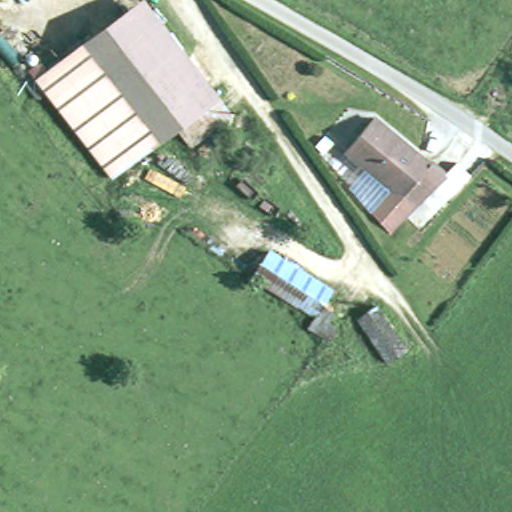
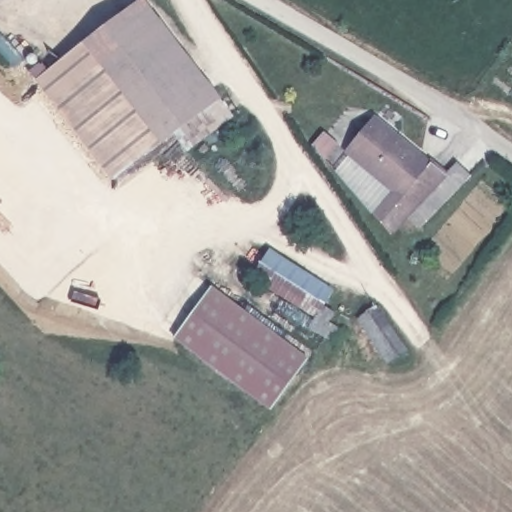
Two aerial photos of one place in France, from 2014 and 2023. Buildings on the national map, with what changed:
unchanged [(222,90),(115,173),(39,76),(132,0),(151,0),(222,90)]
unchanged [(402,150),(407,145),(446,177),(399,237),(379,222),(397,200),(342,156),(373,117),(389,130),(385,135),(402,150)]
unchanged [(320,328),(314,325),(302,316),(308,305),(248,267),(265,242),(325,280),(315,295),(328,303),(324,310),(328,312),(333,316),(324,331),(320,328)]
new [(309,358),(270,410),(173,337),(212,287),(309,358)]

